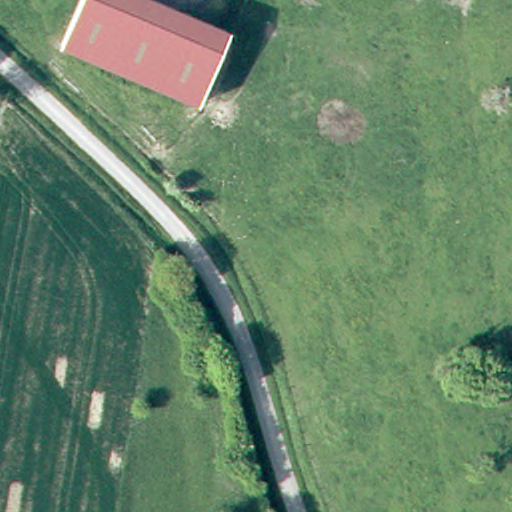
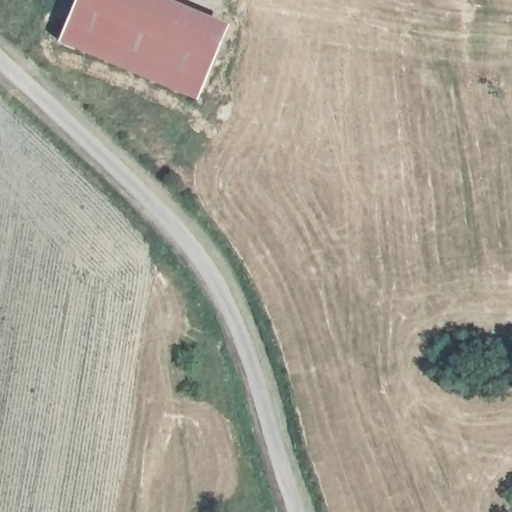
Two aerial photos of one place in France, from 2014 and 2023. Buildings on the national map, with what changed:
unchanged [(63,39),(79,0),(180,0),(233,23),(202,97),(63,39)]

